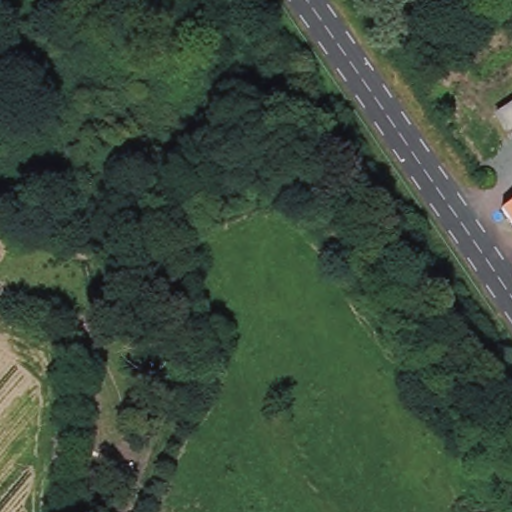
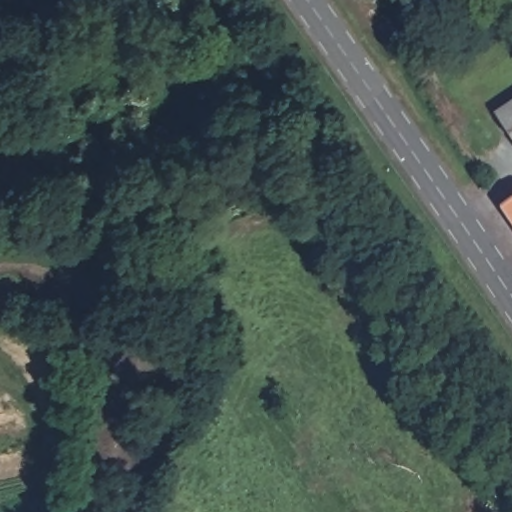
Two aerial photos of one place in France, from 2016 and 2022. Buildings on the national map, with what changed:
unchanged [(512,110),(512,137),(500,119),(512,110)]
unchanged [(503,207),(512,200),(512,220),(503,207)]

